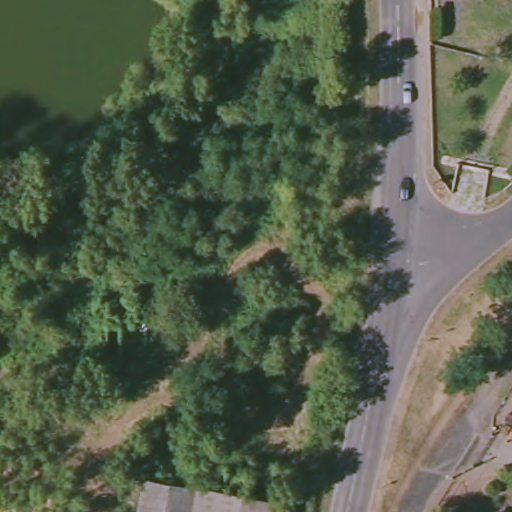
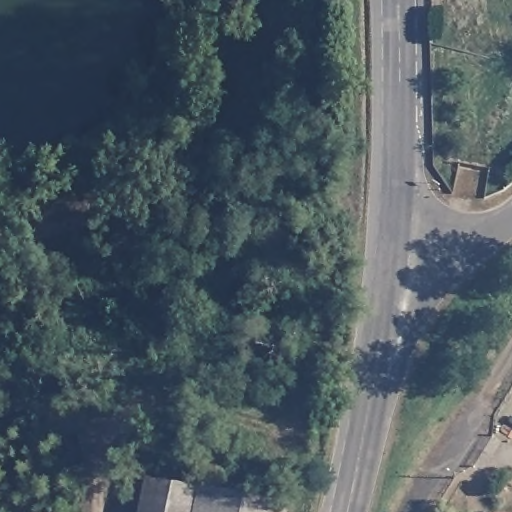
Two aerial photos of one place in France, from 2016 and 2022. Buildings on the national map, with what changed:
unchanged [(282,503),(281,512),(133,512),(138,478),(282,503)]

